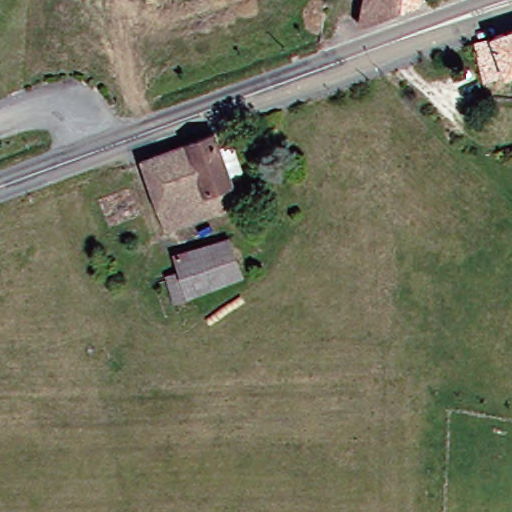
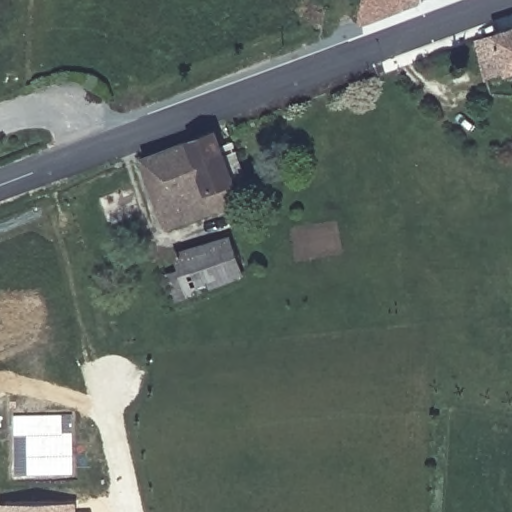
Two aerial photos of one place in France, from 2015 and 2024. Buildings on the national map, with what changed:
unchanged [(427,6),(370,26),(375,0),(428,0),(427,6)]
unchanged [(500,68),(494,37),(491,27),(507,22),(512,20),(512,64),(500,68)]
unchanged [(234,130),(250,180),(240,184),(170,208),(153,159),(234,130)]
unchanged [(240,184),(250,180),(257,198),(246,202),(176,227),(170,208),(240,184)]
unchanged [(168,296),(162,276),(180,271),(175,257),(235,240),(257,233),(265,260),(245,267),(214,278),(217,287),(204,291),(205,296),(188,301),(172,307),(168,296)]
new [(14,416),(72,415),(72,475),(15,475),(14,416)]
new [(77,512),(0,512),(0,502),(77,502),(77,512)]

